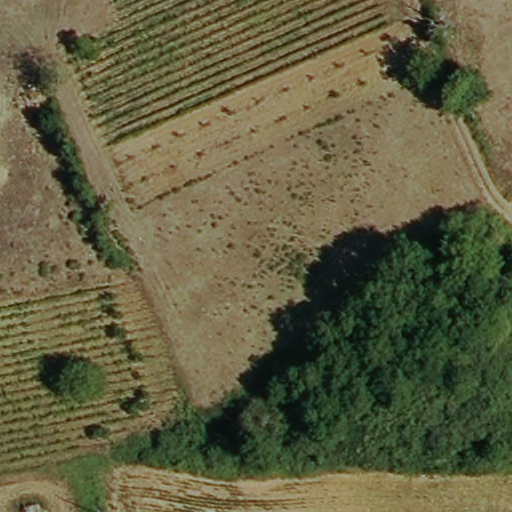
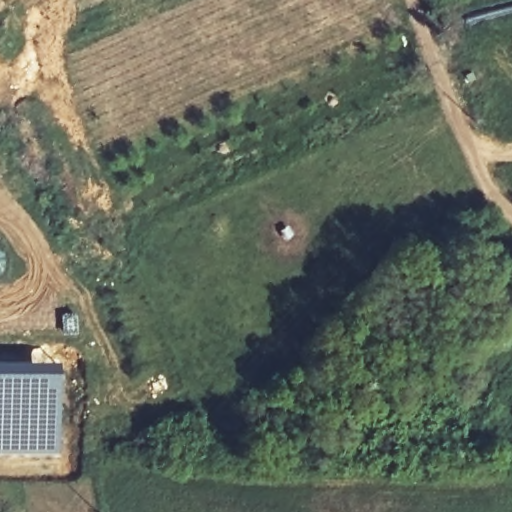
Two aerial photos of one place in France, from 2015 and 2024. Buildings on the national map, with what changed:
new [(19,367),(19,363),(60,361),(60,456),(0,455),(0,367),(19,367)]

